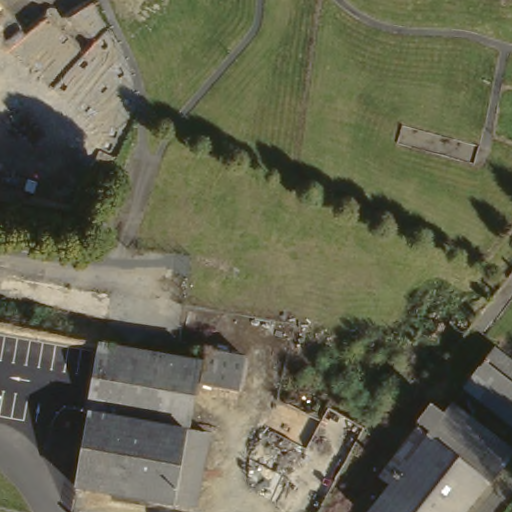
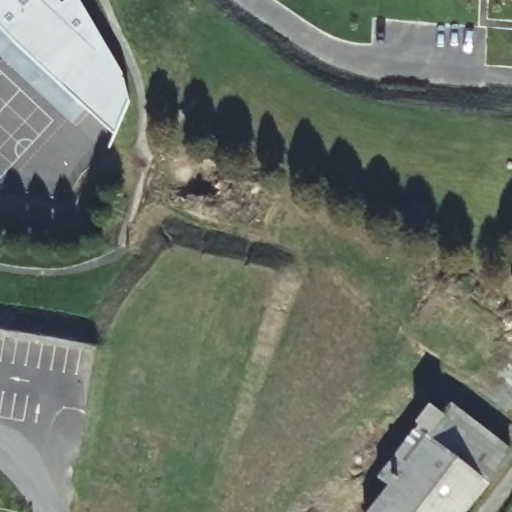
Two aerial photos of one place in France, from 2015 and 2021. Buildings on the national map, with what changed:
new [(63,5),(71,0),(80,0),(122,74),(128,100),(112,135),(85,110),(72,124),(0,57),(0,0),(58,0),(63,5)]
demolished [(101,343),(0,325),(0,271),(111,291),(101,343)]
demolished [(86,429),(0,411),(0,325),(101,343),(86,429)]
demolished [(189,358),(191,346),(201,348),(187,428),(208,432),(196,505),(76,485),(86,429),(101,343),(189,358)]
demolished [(246,354),(239,388),(201,381),(207,347),(246,354)]
demolished [(494,350),(512,363),(512,385),(484,363),(494,350)]
unchanged [(426,438),(429,435),(416,425),(429,407),(443,417),(448,408),(453,404),(512,450),(512,455),(511,456),(488,486),(487,485),(426,438)]
unchanged [(370,512),(389,486),(378,478),(416,430),(426,438),(487,485),(466,512),(370,512)]

